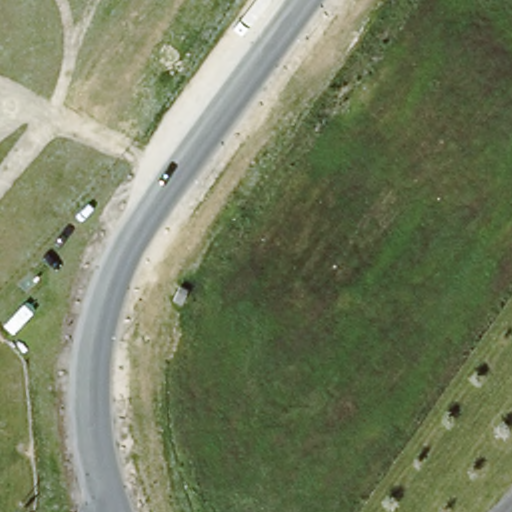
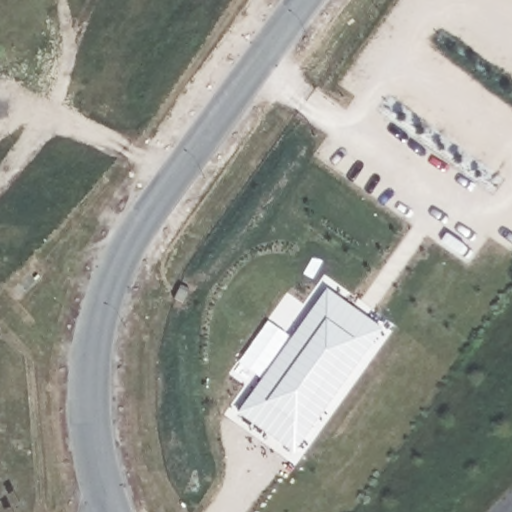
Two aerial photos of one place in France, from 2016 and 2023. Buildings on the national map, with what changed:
new [(327,289),(382,330),(293,452),(239,412),(327,289)]

